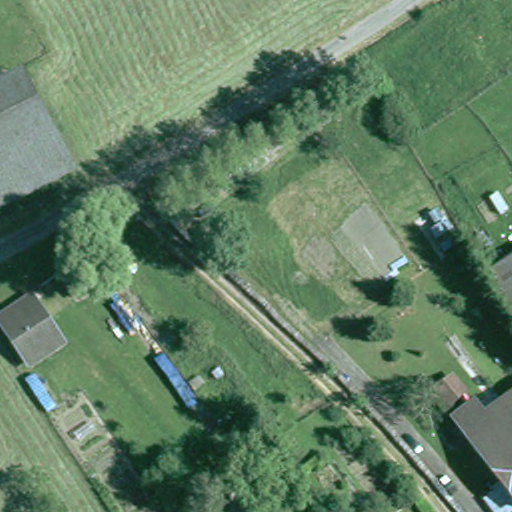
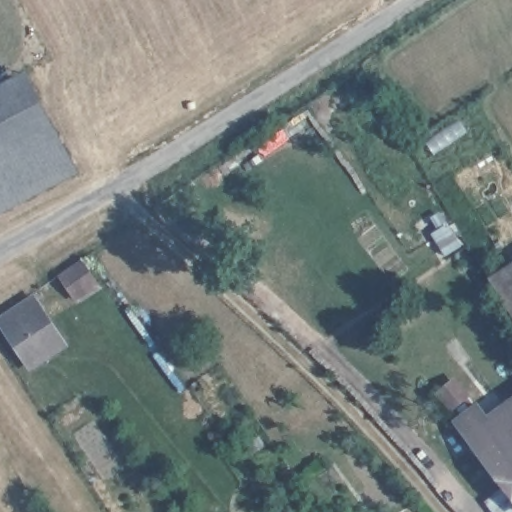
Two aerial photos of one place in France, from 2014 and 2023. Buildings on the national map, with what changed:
unchanged [(25,69),(77,171),(0,211),(0,82),(25,69)]
unchanged [(512,311),(494,282),(512,271),(512,311)]
unchanged [(27,371),(5,338),(0,330),(0,328),(32,306),(39,315),(61,349),(27,371)]
unchanged [(485,401),(492,413),(512,400),(512,493),(462,416),(485,401)]

